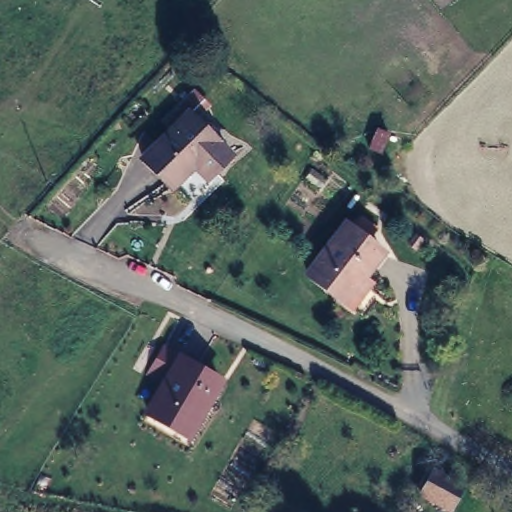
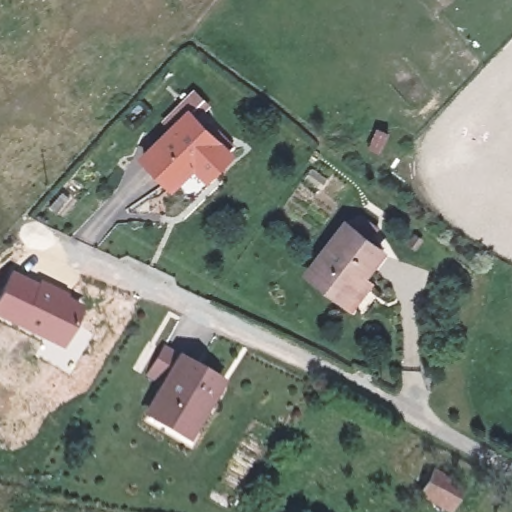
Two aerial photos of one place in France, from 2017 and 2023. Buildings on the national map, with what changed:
unchanged [(191,158),(168,181),(140,152),(185,109),(226,150),(211,165),(205,172),(191,158)]
unchanged [(347,298),(315,274),(352,225),(388,252),(370,278),(352,302),(347,298)]
new [(11,275),(39,287),(41,282),(67,295),(65,300),(79,307),(80,312),(65,346),(0,315),(0,298),(11,275)]
unchanged [(180,419),(159,406),(172,381),(155,371),(169,346),(227,380),(202,423),(199,429),(180,419)]
unchanged [(471,492),(461,512),(457,512),(433,498),(446,476),(471,492)]

